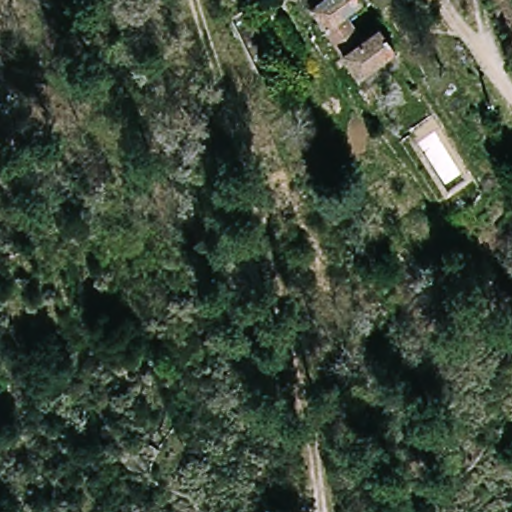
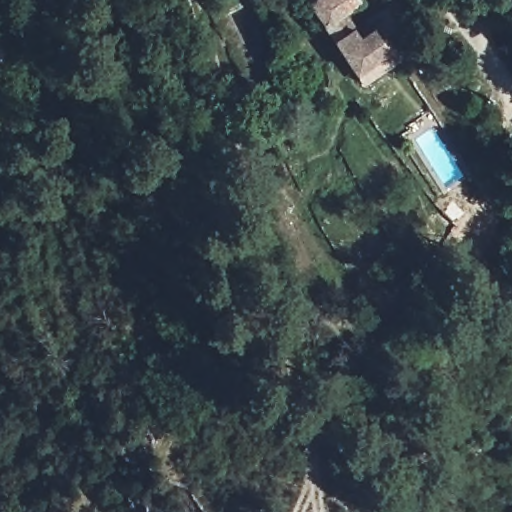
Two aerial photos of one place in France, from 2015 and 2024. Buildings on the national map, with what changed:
unchanged [(337,9),(317,21),(307,5),(305,0),(351,0),(337,9)]
unchanged [(350,78),(342,66),(317,21),(337,9),(348,25),(352,32),(370,22),(383,43),(392,59),(350,78)]

